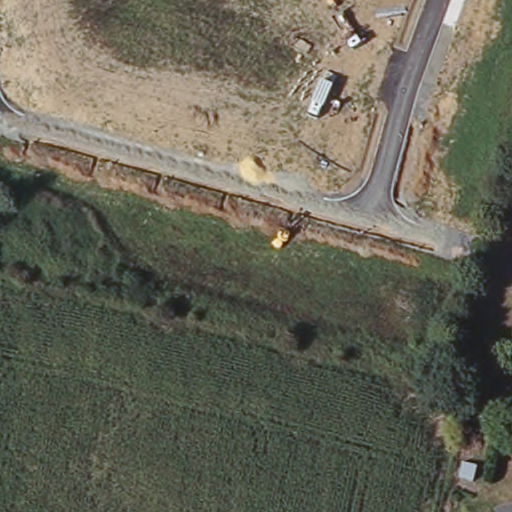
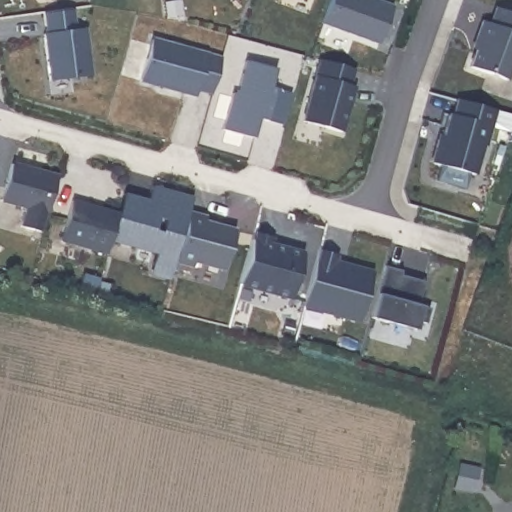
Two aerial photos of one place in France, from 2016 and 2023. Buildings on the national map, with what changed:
new [(322,20),(329,0),(378,0),(394,5),(379,44),(357,35),(322,20)]
new [(73,9),(74,29),(85,29),(90,75),(49,79),(40,13),(73,9)]
new [(483,47),(479,46),(484,28),(492,32),(499,14),(512,20),(512,76),(508,87),(472,74),(483,47)]
new [(224,58),(213,95),(198,91),(195,97),(141,82),(153,38),(224,58)]
new [(304,120),(320,59),(355,68),(349,85),(354,86),(342,131),(304,120)]
new [(238,94),(247,61),(277,69),(272,87),(278,88),(293,93),(284,125),(268,120),(259,117),(253,139),(222,129),(232,92),(238,94)]
new [(438,147),(444,148),(451,121),(454,123),(459,106),(499,118),(488,153),(484,151),(476,181),(433,169),(438,147)]
new [(59,178),(44,234),(22,228),(28,207),(3,201),(14,165),(59,178)]
new [(119,214),(125,196),(147,203),(151,189),(194,201),(189,214),(206,219),(204,223),(235,232),(224,273),(194,265),(192,269),(176,265),(174,273),(154,268),(156,255),(110,245),(108,255),(61,243),(74,202),(119,214)]
new [(274,238),(273,244),(304,252),(292,298),(242,285),(256,231),(274,238)]
new [(337,257),(334,265),(373,275),(360,323),(304,308),(319,253),(337,257)]
new [(402,273),(399,277),(424,284),(418,307),(429,311),(425,325),(417,323),(414,332),(371,320),(384,269),(402,273)]

